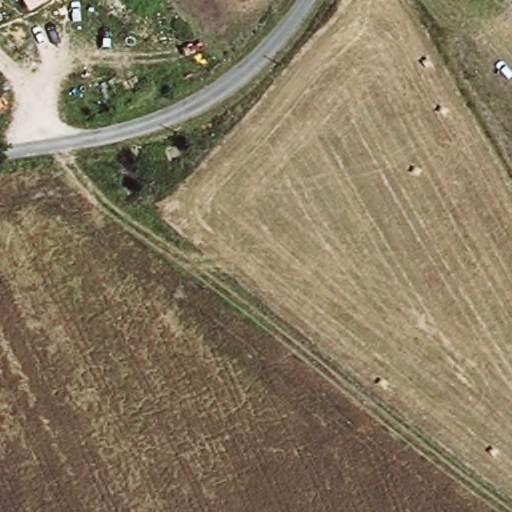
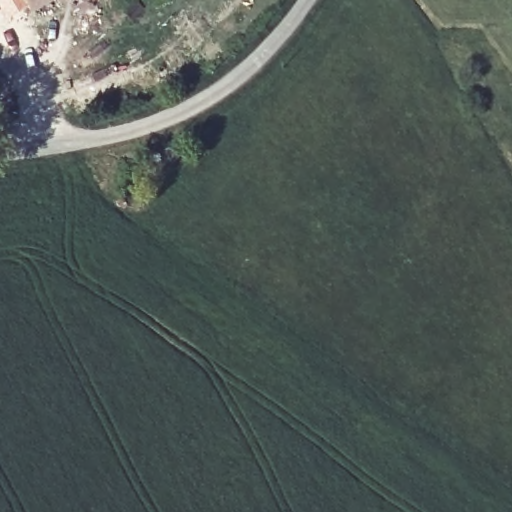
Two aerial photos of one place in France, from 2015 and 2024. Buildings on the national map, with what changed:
unchanged [(0,12),(0,0),(1,0),(6,9),(0,12)]
unchanged [(22,0),(52,0),(29,14),(22,0)]

